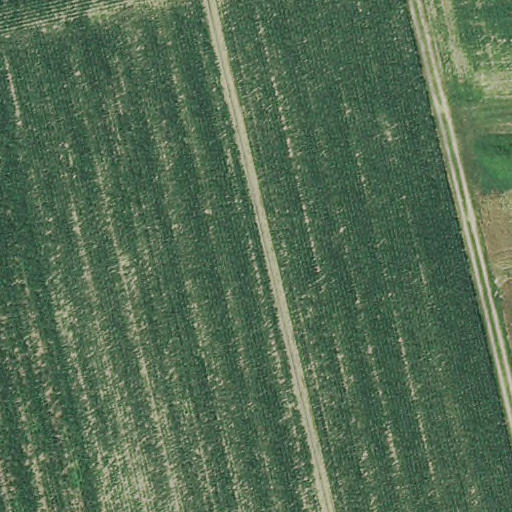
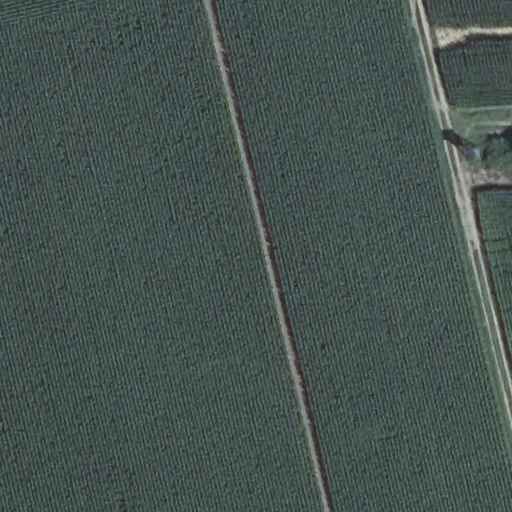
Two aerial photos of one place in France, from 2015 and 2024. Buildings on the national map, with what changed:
[]

